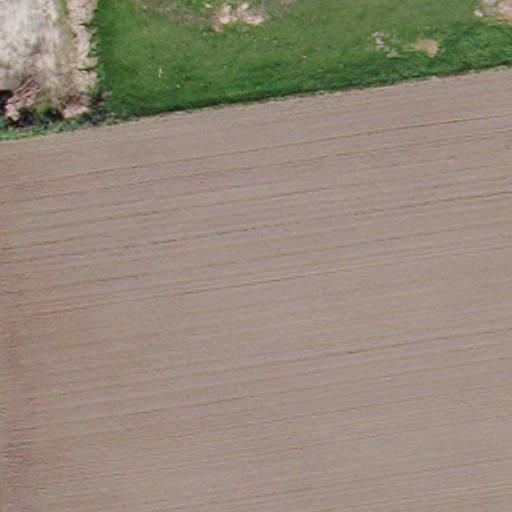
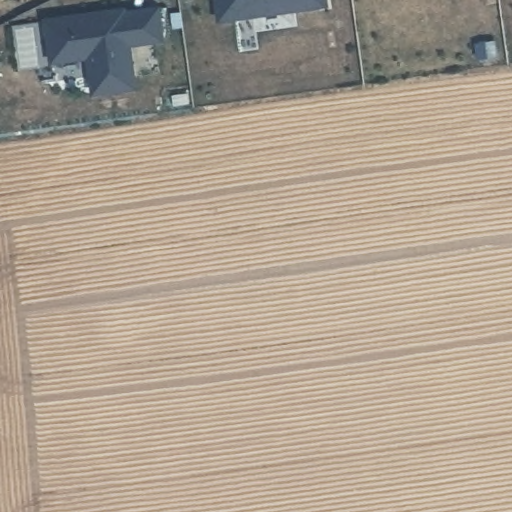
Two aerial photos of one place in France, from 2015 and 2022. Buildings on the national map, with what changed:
new [(319,9),(212,24),(209,0),(317,0),(319,9)]
new [(94,16),(120,12),(120,16),(153,11),(158,42),(124,47),(131,90),(89,96),(84,60),(47,65),(42,23),(87,17),(94,16)]

